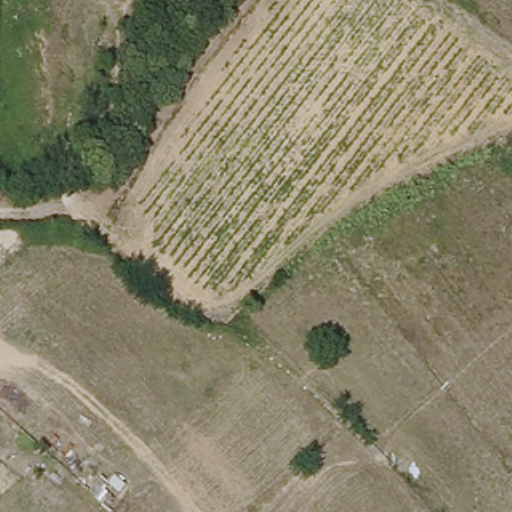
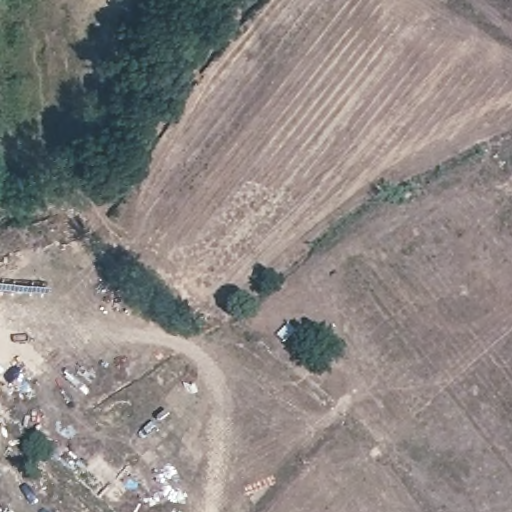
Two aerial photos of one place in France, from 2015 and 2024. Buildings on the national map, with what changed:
[]

